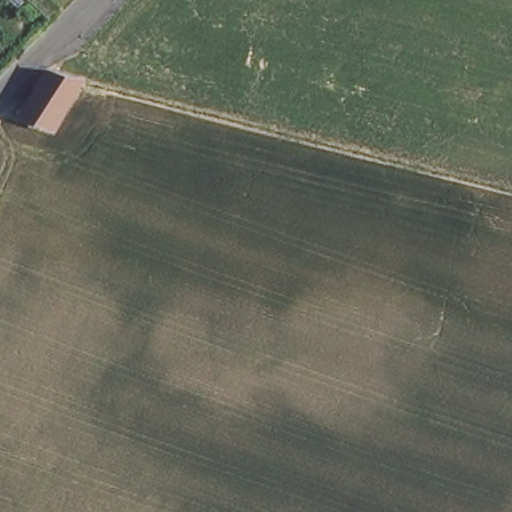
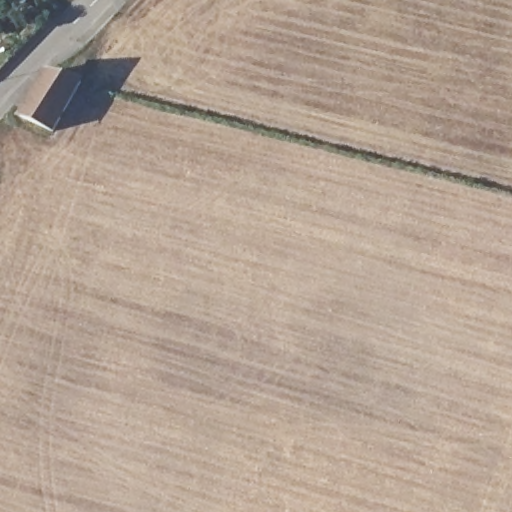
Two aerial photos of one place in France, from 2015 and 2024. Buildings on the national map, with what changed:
unchanged [(46,71),(79,80),(56,125),(24,115),(46,71)]

